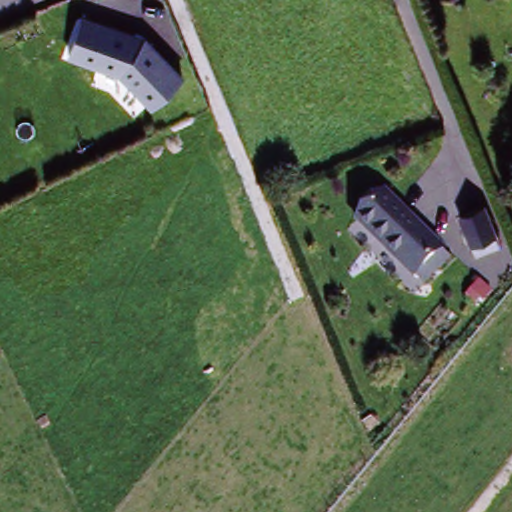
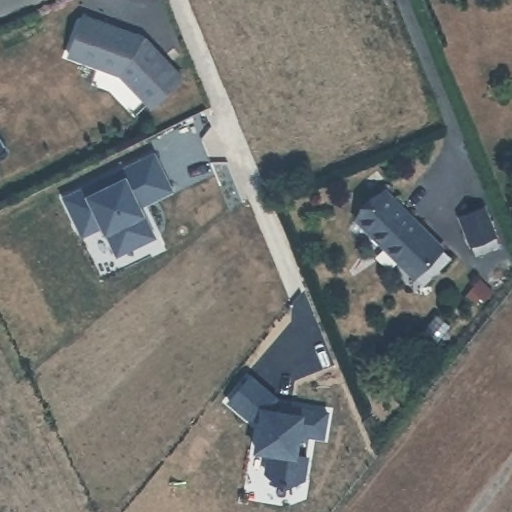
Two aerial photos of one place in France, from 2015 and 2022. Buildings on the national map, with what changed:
unchanged [(82,8),(143,28),(186,74),(152,103),(69,54),(82,8)]
new [(155,239),(119,256),(97,209),(77,218),(67,198),(155,157),(171,194),(146,205),(142,197),(137,199),(155,239)]
unchanged [(423,276),(416,269),(358,213),(386,185),(443,241),(451,248),(423,276)]
new [(146,205),(140,208),(137,199),(142,197),(146,205)]
new [(105,226),(85,235),(77,218),(97,209),(105,226)]
unchanged [(485,298),(493,304),(482,321),(473,315),(485,298)]
new [(325,440),(302,433),(297,456),(308,457),(306,481),(283,488),(264,472),(267,454),(254,452),(258,421),(248,420),(227,402),(251,374),(277,398),(277,405),(329,412),(325,440)]

